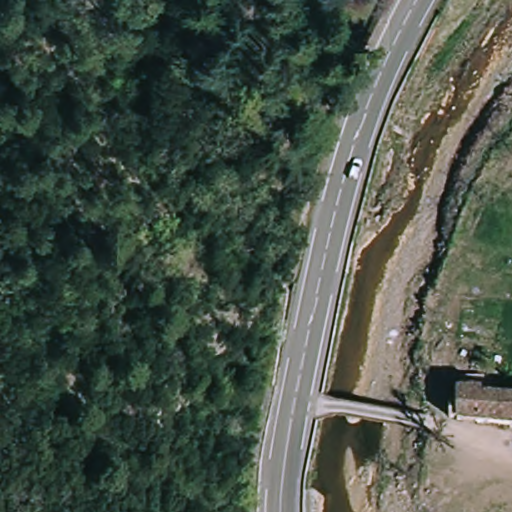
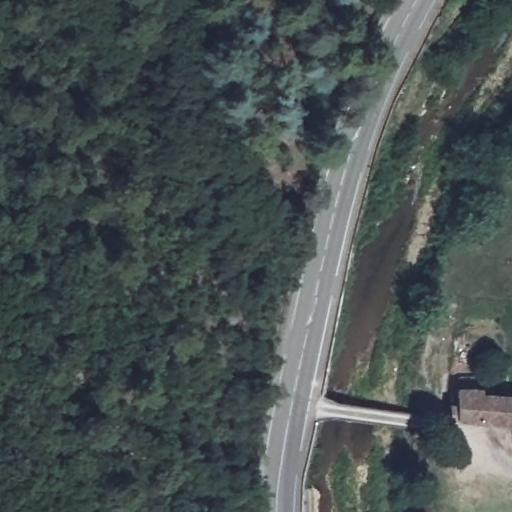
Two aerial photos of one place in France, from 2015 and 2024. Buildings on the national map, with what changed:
unchanged [(452,423),(457,382),(485,386),(512,388),(512,428),(452,423)]

